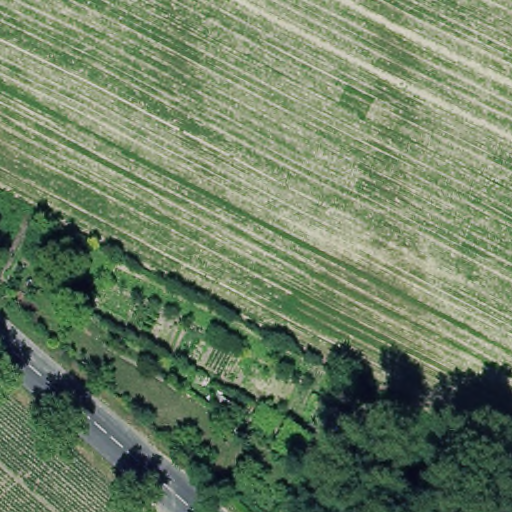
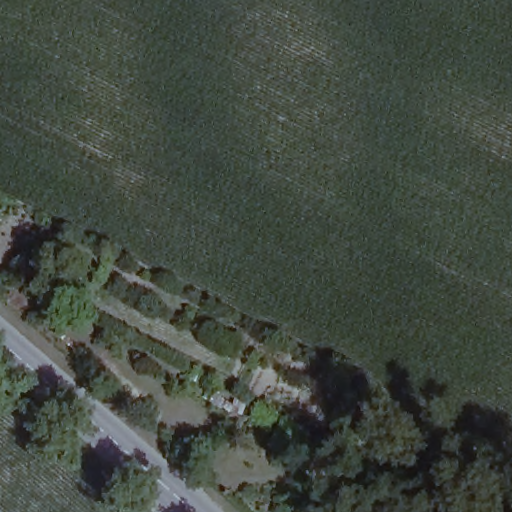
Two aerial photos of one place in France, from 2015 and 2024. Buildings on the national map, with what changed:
unchanged [(308,431),(299,450),(271,439),(283,416),(308,431)]

